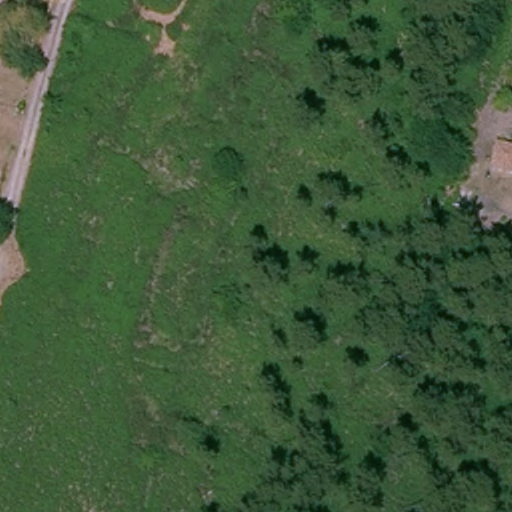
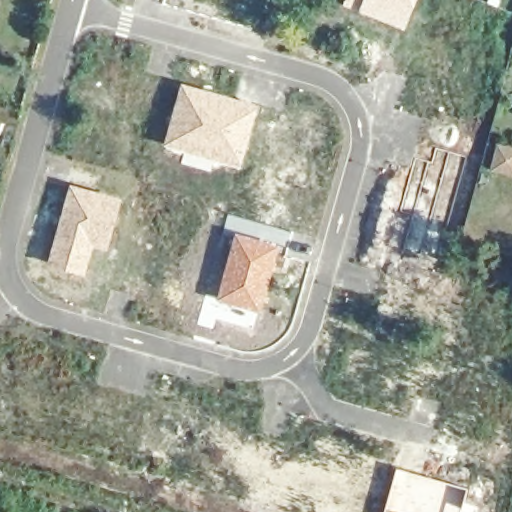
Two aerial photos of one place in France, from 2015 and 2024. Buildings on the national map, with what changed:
new [(358,13),(342,6),(345,0),(416,0),(403,31),(358,13)]
new [(241,167),(163,146),(180,84),(258,105),(241,167)]
new [(106,253),(92,249),(85,276),(47,265),(69,185),(121,200),(106,253)]
new [(260,313),(216,300),(235,234),(279,247),(260,313)]
new [(468,489),(462,512),(384,512),(395,469),(468,489)]

